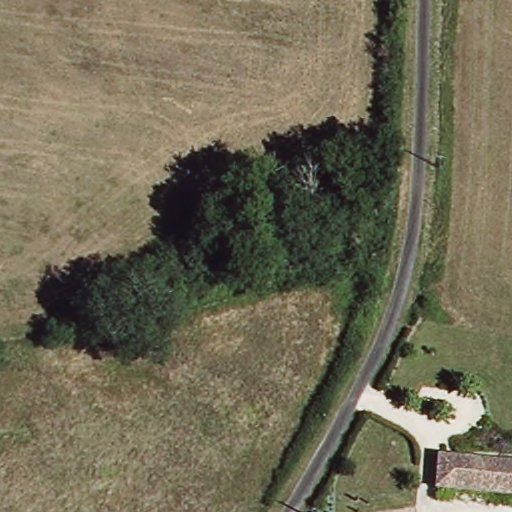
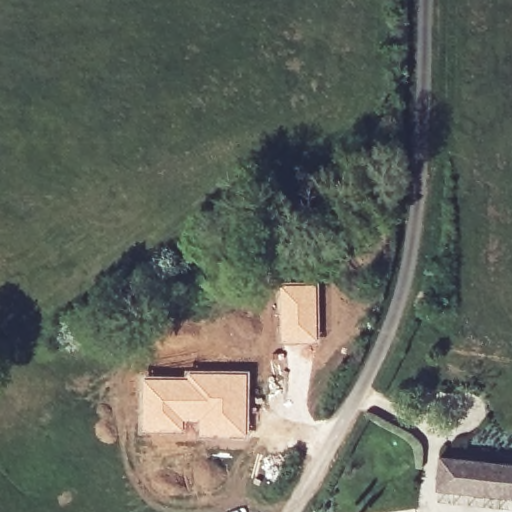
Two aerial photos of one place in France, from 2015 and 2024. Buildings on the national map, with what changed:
new [(318,281),(320,341),(280,343),(279,281),(318,281)]
new [(140,376),(185,377),(186,370),(250,370),(250,436),(199,436),(199,422),(185,422),(182,431),(140,431),(140,376)]
unchanged [(437,490),(440,455),(512,462),(512,498),(437,490)]

